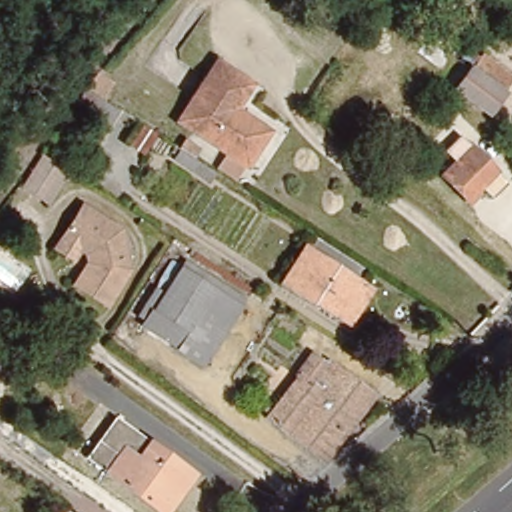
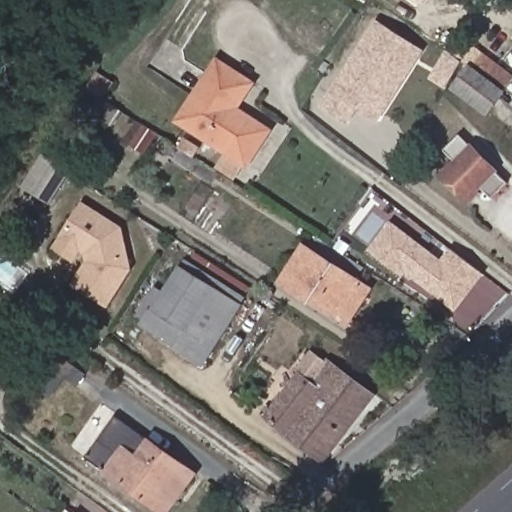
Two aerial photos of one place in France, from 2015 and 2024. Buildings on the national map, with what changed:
new [(412,0),(421,0),(417,5),(412,0)]
new [(395,123),(383,117),(381,122),(358,110),(350,124),(322,106),(376,20),(426,51),(412,70),(424,77),(395,123)]
unchanged [(480,52),(512,75),(512,78),(502,92),(497,96),(484,110),(455,89),(469,68),(480,52)]
unchanged [(247,82),(230,108),(260,130),(239,161),(174,119),(214,60),(247,82)]
unchanged [(80,166),(62,154),(80,129),(64,118),(81,92),(115,116),(80,166)]
unchanged [(440,175),(470,146),(493,169),(464,197),(440,175)]
unchanged [(48,202),(45,200),(22,185),(43,152),(65,167),(70,170),(48,202)]
unchanged [(123,232),(128,274),(103,311),(72,289),(86,267),(86,257),(79,252),(72,263),(53,252),(60,240),(81,206),(123,232)]
new [(405,274),(396,273),(369,252),(391,222),(441,262),(450,250),(484,276),(455,312),(405,274)]
unchanged [(358,285),(336,320),(284,286),(307,249),(358,285)]
unchanged [(136,318),(144,307),(156,290),(165,296),(182,271),(187,263),(248,304),(243,311),(203,372),(173,352),(140,331),(144,324),(136,318)]
unchanged [(324,457),(268,417),(283,397),(301,375),(297,372),(311,351),(317,354),(375,392),(324,457)]
unchanged [(156,508),(85,457),(114,417),(193,473),(180,491),(165,512),(162,512),(156,508)]
unchanged [(71,508),(76,512),(69,512),(71,508)]

